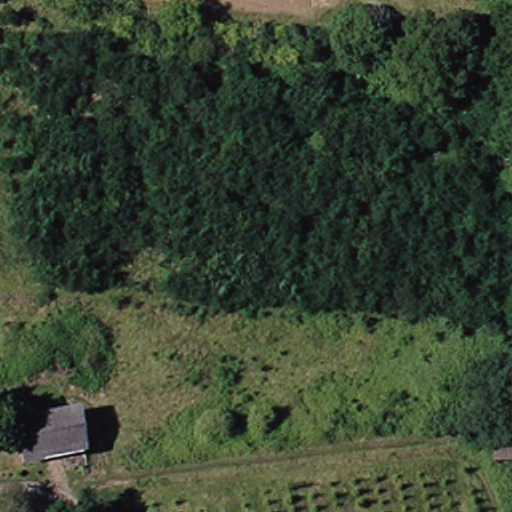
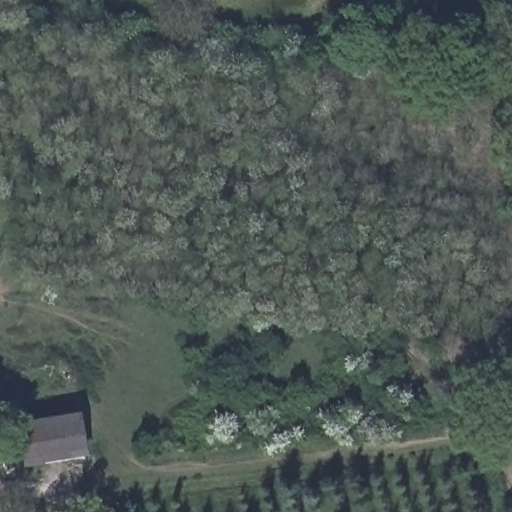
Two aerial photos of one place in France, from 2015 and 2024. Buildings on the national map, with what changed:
unchanged [(20,420),(77,414),(83,456),(23,461),(20,420)]
unchanged [(512,476),(498,477),(492,477),(491,456),(494,456),(512,455),(512,476)]

